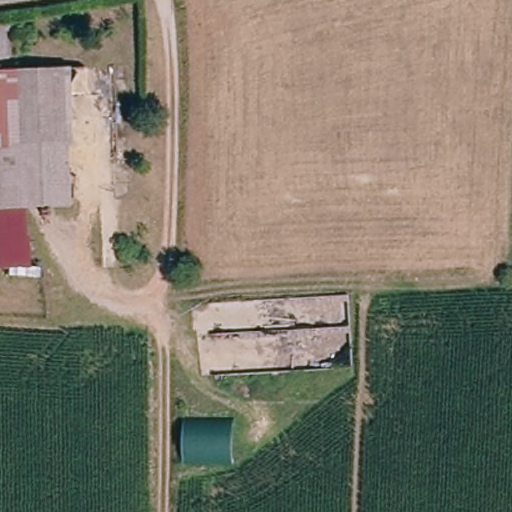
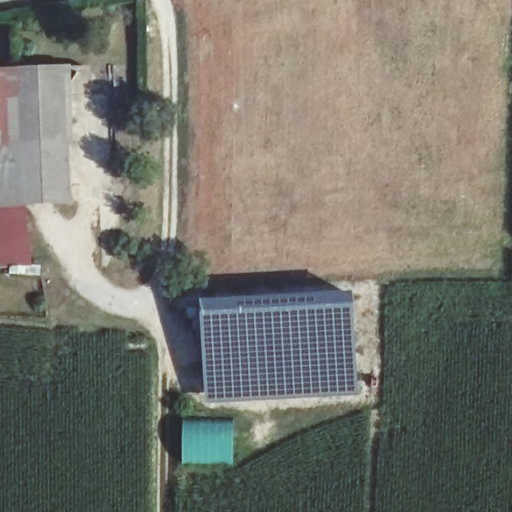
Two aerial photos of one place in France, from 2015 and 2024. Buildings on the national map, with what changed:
new [(137,48),(139,155),(129,155),(125,48),(137,48)]
unchanged [(72,220),(2,222),(1,157),(0,157),(0,71),(6,71),(70,69),(72,220)]
new [(292,296),(352,292),(358,397),(204,406),(200,300),(292,296)]
new [(187,421),(233,424),(233,459),(197,459),(182,448),(188,434),(187,421)]

